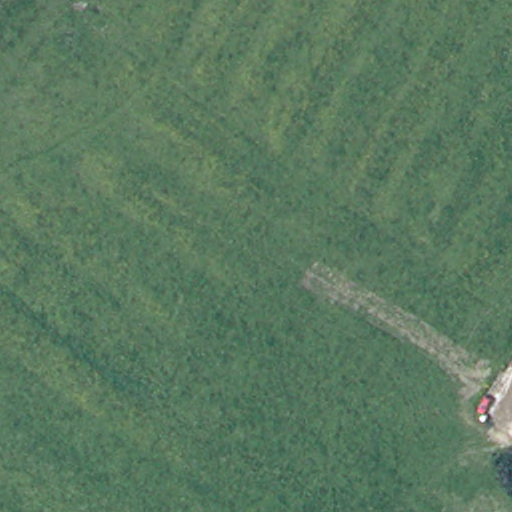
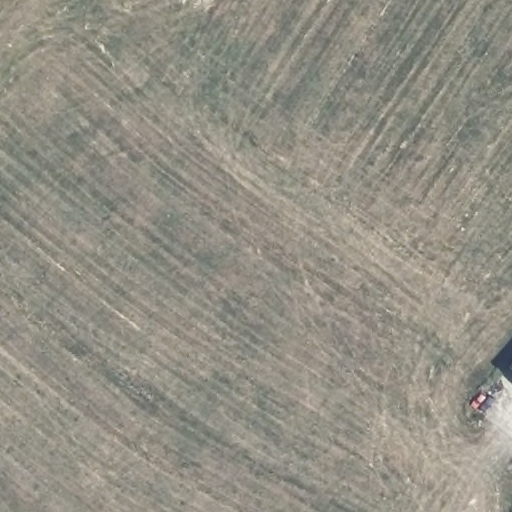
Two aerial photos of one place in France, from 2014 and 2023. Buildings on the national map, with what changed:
unchanged [(512,363),(512,369),(509,366),(512,363)]

